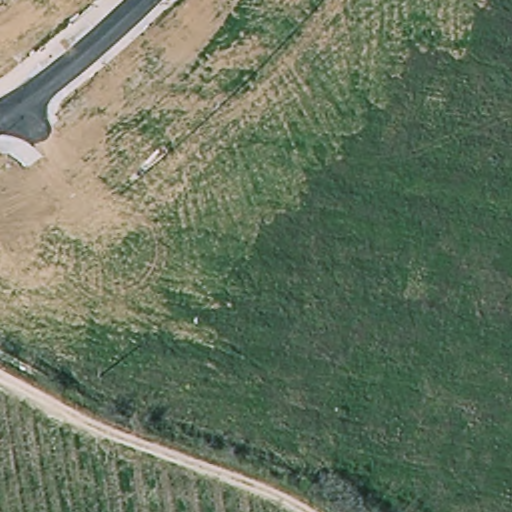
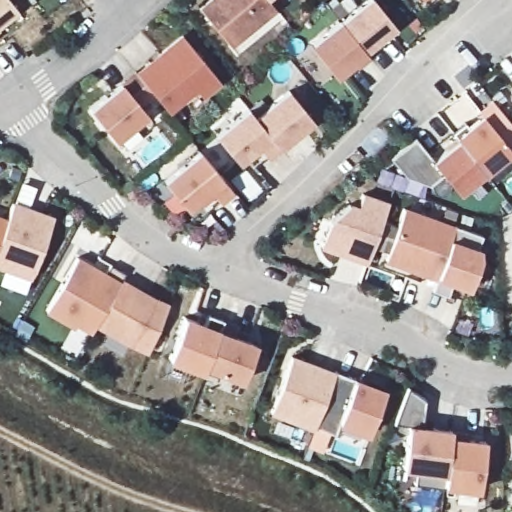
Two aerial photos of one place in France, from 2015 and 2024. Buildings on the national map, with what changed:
unchanged [(0,32),(0,0),(10,0),(22,14),(0,32)]
new [(269,0),(280,12),(234,50),(203,14),(219,0),(269,0)]
new [(364,0),(373,0),(396,26),(366,50),(346,26),(341,19),(364,0)]
new [(425,0),(428,0),(426,1),(425,0)]
new [(346,26),(374,60),(361,70),(358,66),(341,81),(316,51),(346,26)]
unchanged [(162,60),(186,39),(224,85),(206,100),(200,93),(172,115),(157,97),(141,78),(154,66),(162,60)]
unchanged [(140,76),(141,78),(157,97),(143,109),(150,119),(120,143),(95,114),(140,76)]
new [(294,95),(317,124),(284,151),(261,122),(294,95)]
new [(253,114),(261,122),(284,151),(286,153),(273,163),(263,150),(243,166),(221,140),(253,114)]
new [(470,126),(474,131),(489,119),(512,148),(512,158),(490,176),(489,174),(464,144),(458,136),(470,126)]
new [(421,141),(440,164),(464,144),(489,174),(464,195),(449,178),(435,189),(412,180),(397,161),(421,141)]
new [(206,156),(238,196),(225,207),(218,198),(206,207),(203,203),(191,212),(170,185),(206,156)]
new [(335,224),(355,208),(363,210),(368,198),(393,207),(372,267),(326,250),(335,224)]
new [(55,215),(28,280),(0,270),(0,257),(11,224),(18,203),(55,215)]
new [(409,213),(460,230),(442,282),(391,264),(409,213)]
new [(0,257),(0,219),(11,224),(0,257)]
new [(487,239),(482,253),(485,254),(486,262),(475,292),(458,285),(453,299),(438,294),(461,229),(487,239)]
new [(126,274),(123,279),(155,298),(168,303),(146,354),(129,346),(95,327),(90,334),(76,325),(73,330),(45,313),(77,257),(105,273),(110,264),(126,274)]
new [(204,367),(202,374),(168,360),(186,315),(204,322),(208,317),(228,326),(226,332),(211,371),(204,367)]
new [(228,326),(243,332),(240,341),(262,349),(249,384),(211,371),(228,326)]
new [(290,358),(333,374),(313,429),(269,414),(290,358)]
new [(385,388),(368,436),(341,427),(338,436),(329,433),(322,452),(306,446),(313,429),(333,374),(334,372),(354,377),(385,388)]
new [(486,439),(479,492),(443,487),(415,483),(415,472),(402,470),(407,425),(393,424),(408,388),(425,399),(421,425),(451,428),(450,436),(486,439)]

